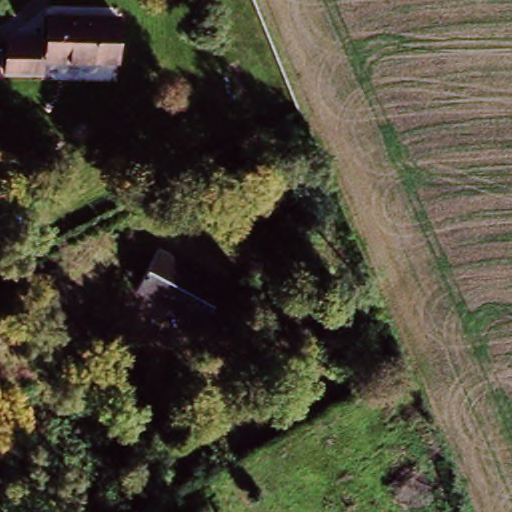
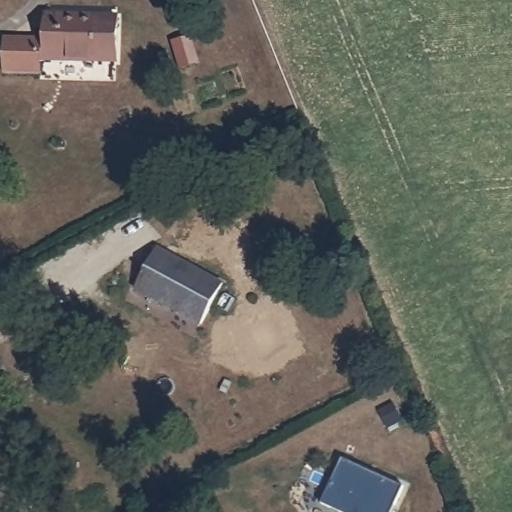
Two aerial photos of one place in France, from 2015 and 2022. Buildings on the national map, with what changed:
unchanged [(41,30),(117,34),(115,81),(38,78),(40,57),(41,30)]
unchanged [(0,55),(40,57),(38,78),(31,77),(31,88),(0,86),(0,55)]
unchanged [(133,293),(157,250),(225,288),(201,331),(133,293)]
new [(395,403),(403,421),(388,429),(380,410),(395,403)]
new [(340,459),(402,489),(391,512),(341,512),(320,502),(340,459)]
new [(313,469),(325,474),(320,486),(308,481),(313,469)]

